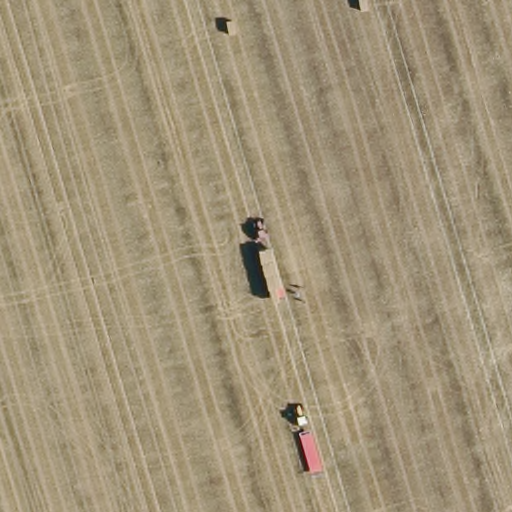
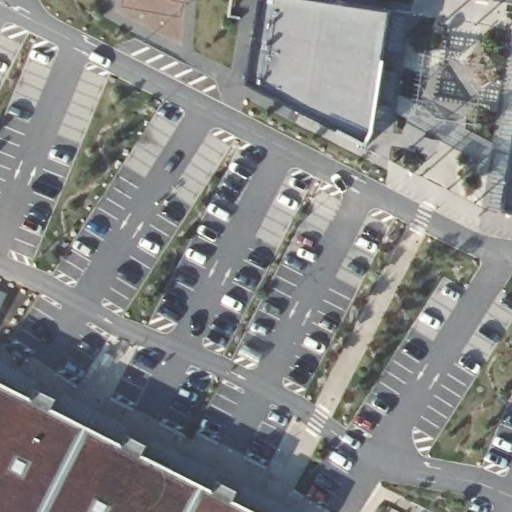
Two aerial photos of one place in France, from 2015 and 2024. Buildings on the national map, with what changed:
new [(365,133),(362,143),(249,84),(263,0),(276,0),(384,17),(365,133)]
new [(506,208),(512,175),(512,209),(506,208)]
new [(37,392),(57,404),(51,414),(122,449),(126,439),(148,451),(142,461),(212,496),(215,485),(237,497),(230,506),(243,512),(0,512),(0,389),(31,404),(37,392)]

